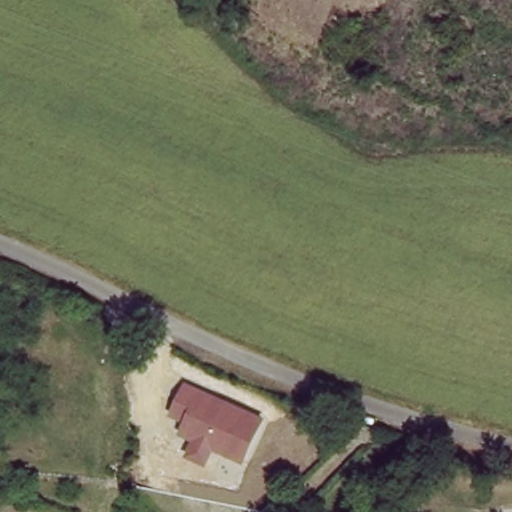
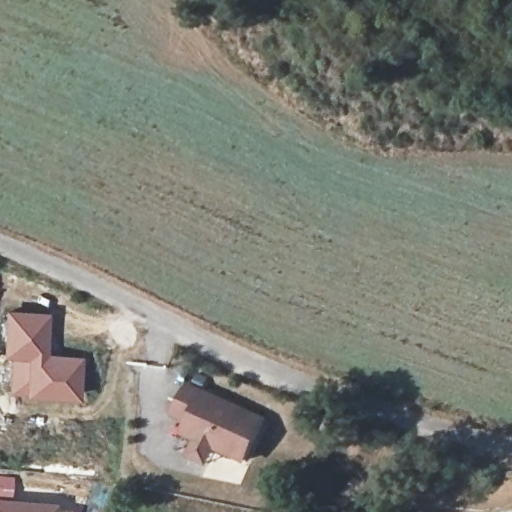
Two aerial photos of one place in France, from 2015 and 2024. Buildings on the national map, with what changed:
new [(25,393),(25,396),(10,392),(13,356),(3,355),(6,311),(50,313),(47,353),(83,357),(79,398),(25,393)]
unchanged [(246,463),(216,450),(210,465),(188,456),(196,440),(181,433),(186,422),(171,416),(186,383),(266,417),(246,463)]
new [(0,500),(60,506),(59,512),(0,512),(0,500)]

